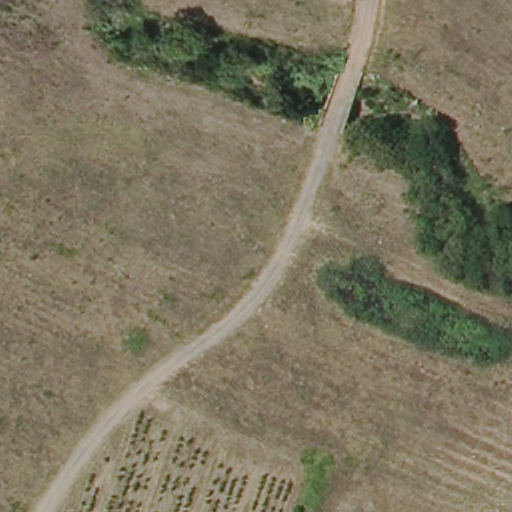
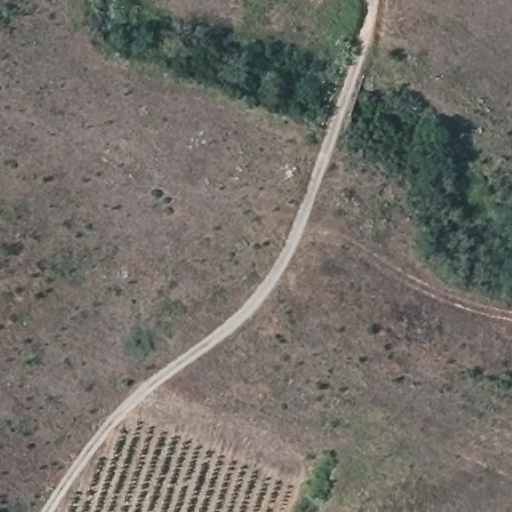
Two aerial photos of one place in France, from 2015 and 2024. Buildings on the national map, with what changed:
[]

